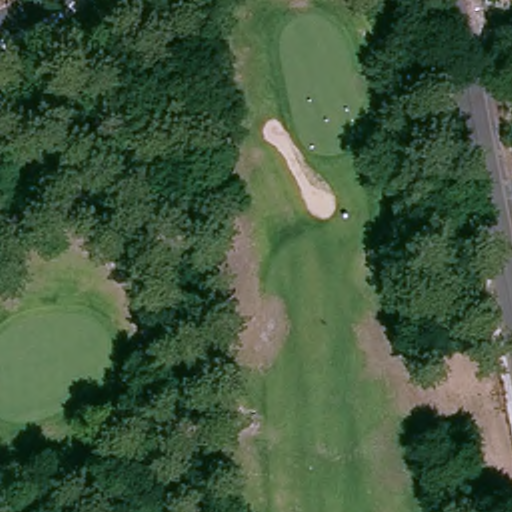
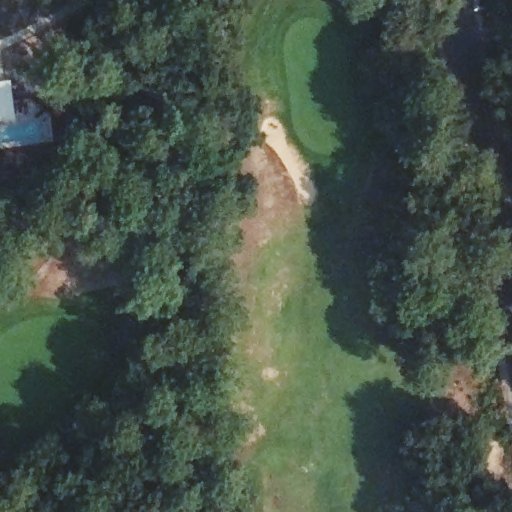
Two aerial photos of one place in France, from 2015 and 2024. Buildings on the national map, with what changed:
new [(17,118),(0,120),(0,80),(11,78),(17,118)]

